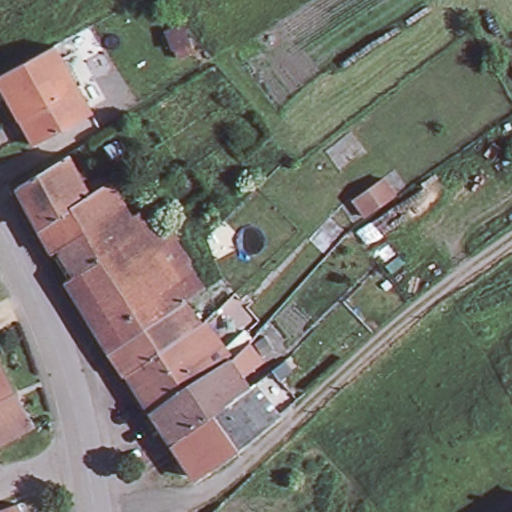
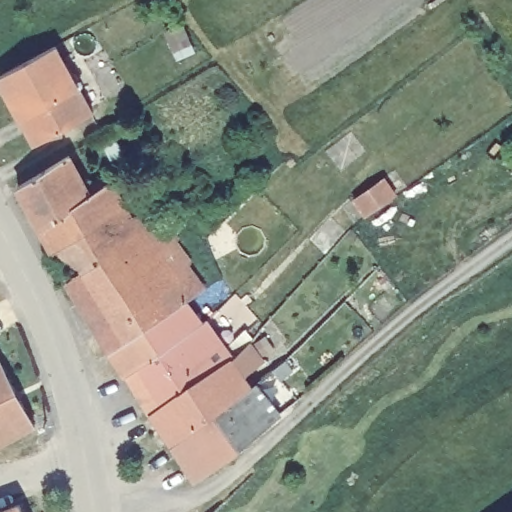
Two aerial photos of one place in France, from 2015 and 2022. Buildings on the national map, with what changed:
unchanged [(32,146),(0,85),(0,75),(56,44),(96,110),(32,146)]
unchanged [(160,248),(153,253),(152,252),(80,301),(67,279),(62,270),(51,251),(38,226),(36,222),(16,185),(67,154),(88,195),(102,185),(99,180),(104,177),(107,182),(108,181),(122,204),(130,215),(148,203),(161,220),(146,231),(160,247),(160,248)]
unchanged [(394,194),(365,215),(353,199),(382,178),(394,194)]
unchanged [(153,253),(165,267),(88,317),(80,301),(152,252),(153,253)]
unchanged [(126,372),(124,373),(110,352),(97,332),(88,317),(165,267),(175,279),(176,280),(168,285),(185,302),(200,322),(200,323),(163,347),(125,371),(126,372)]
unchanged [(200,323),(200,322),(202,320),(215,337),(139,392),(126,372),(125,371),(163,347),(200,323)]
unchanged [(255,332),(272,355),(245,380),(240,373),(230,359),(229,357),(247,341),(255,332)]
unchanged [(229,357),(230,359),(151,412),(139,392),(215,337),(229,357)]
unchanged [(0,359),(9,375),(35,425),(0,444),(0,359)]
unchanged [(240,373),(160,425),(151,412),(230,359),(240,373)]
unchanged [(263,372),(265,371),(278,361),(287,373),(275,382),(292,401),(237,447),(212,412),(249,387),(248,386),(263,372)]
unchanged [(245,380),(248,386),(249,387),(212,412),(170,441),(160,425),(240,373),(245,380)]
unchanged [(212,412),(237,447),(193,477),(170,441),(212,412)]
unchanged [(22,508),(24,512),(12,512),(22,508)]

